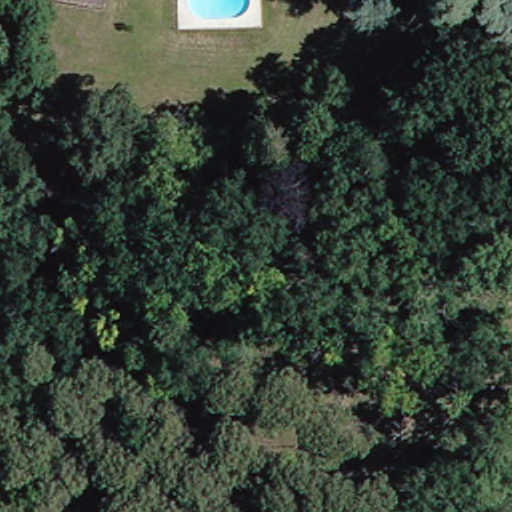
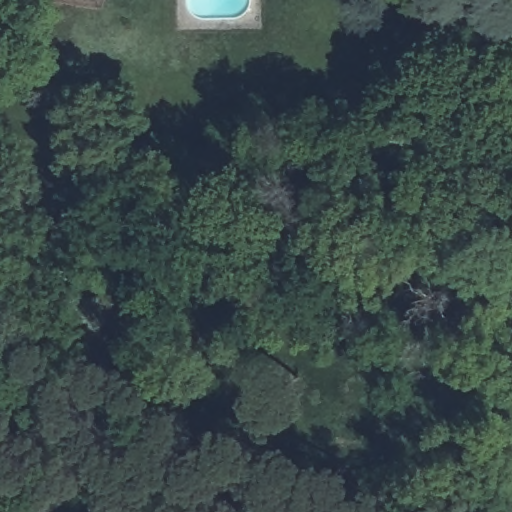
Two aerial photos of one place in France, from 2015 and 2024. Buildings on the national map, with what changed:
unchanged [(75,166),(71,177),(51,170),(54,160),(75,166)]

